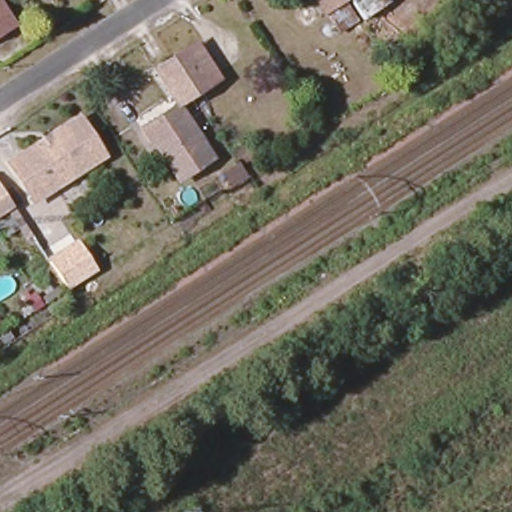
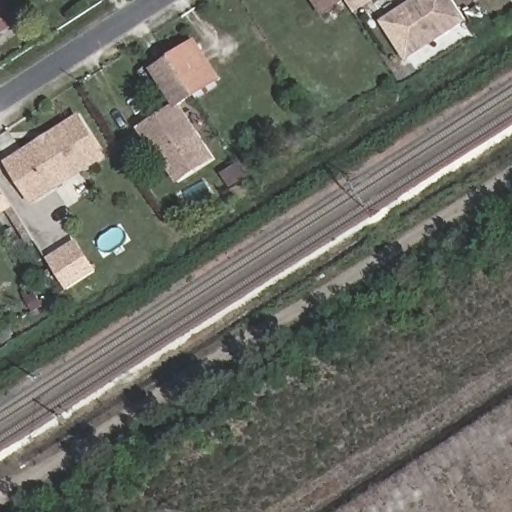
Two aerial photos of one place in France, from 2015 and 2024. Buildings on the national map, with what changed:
unchanged [(318,9),(312,0),(332,0),(318,9)]
unchanged [(357,14),(347,0),(380,0),(357,14)]
new [(382,21),(414,0),(455,0),(468,20),(407,60),(382,21)]
unchanged [(0,33),(0,5),(13,24),(0,33)]
unchanged [(153,69),(170,58),(195,42),(219,79),(194,95),(193,94),(175,105),(153,69)]
unchanged [(213,159),(179,181),(154,144),(151,146),(140,129),(178,105),(213,159)]
unchanged [(48,139),(79,119),(103,156),(33,202),(9,164),(36,147),(48,139)]
unchanged [(0,214),(0,188),(11,206),(0,214)]
new [(76,242),(94,269),(66,286),(49,259),(76,242)]

